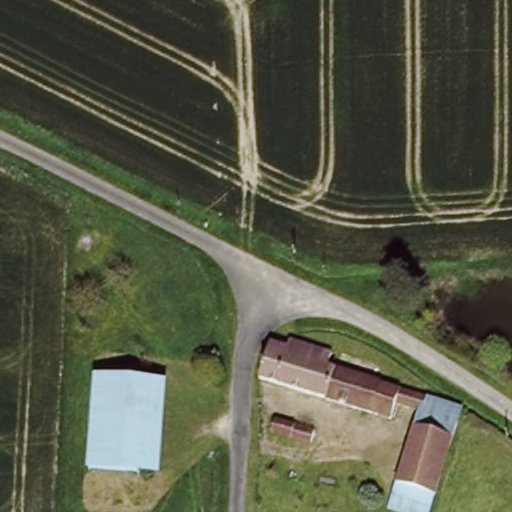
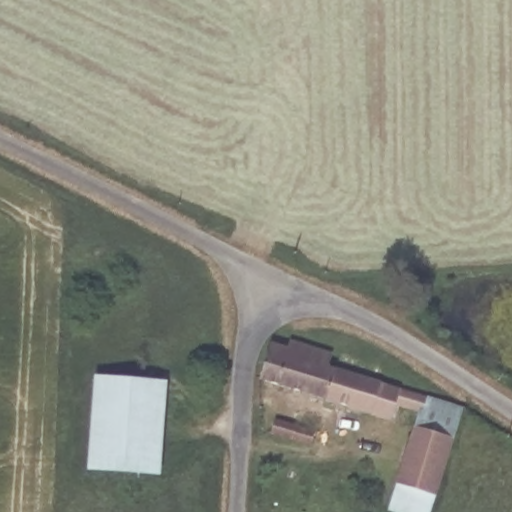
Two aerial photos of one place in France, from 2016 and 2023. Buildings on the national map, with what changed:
unchanged [(426,392),(419,410),(393,403),(389,417),(259,380),(269,345),(284,348),(286,340),(329,351),(326,364),(426,392)]
unchanged [(166,373),(161,474),(87,472),(94,369),(166,373)]
unchanged [(461,404),(450,436),(414,425),(419,410),(426,392),(461,404)]
unchanged [(316,424),(312,435),(271,424),(274,413),(316,424)]
unchanged [(450,436),(430,495),(393,483),(414,425),(450,436)]

